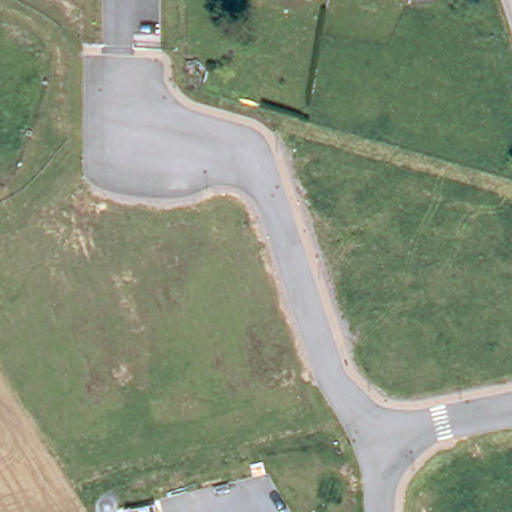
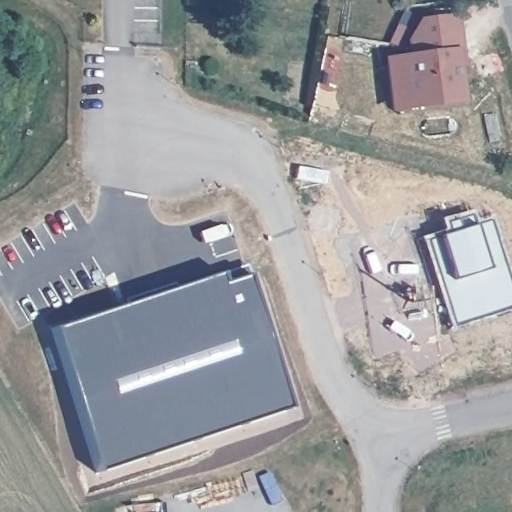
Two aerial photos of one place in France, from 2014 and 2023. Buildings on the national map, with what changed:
new [(460,15),(466,67),(460,67),(465,102),(391,112),(384,57),(407,54),(402,21),(460,15)]
new [(292,410),(100,473),(52,329),(220,273),(223,285),(247,277),(292,410)]

